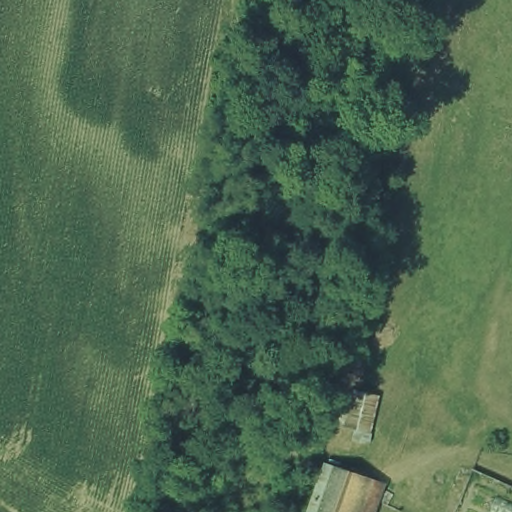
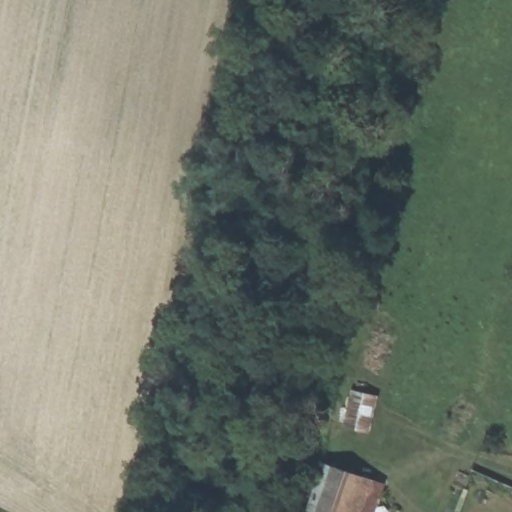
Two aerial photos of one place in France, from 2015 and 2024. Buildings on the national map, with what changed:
unchanged [(370,512),(320,512),(337,470),(380,485),(370,512)]

